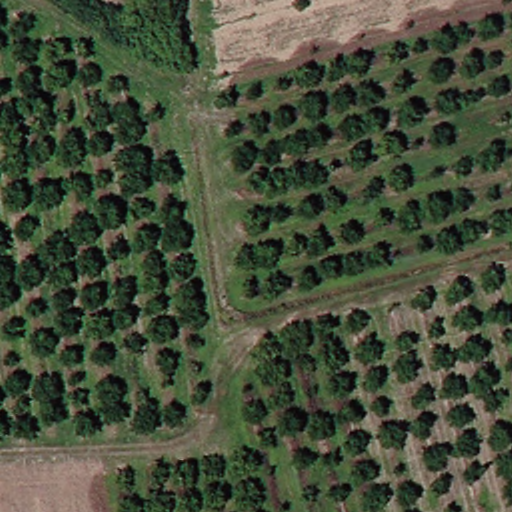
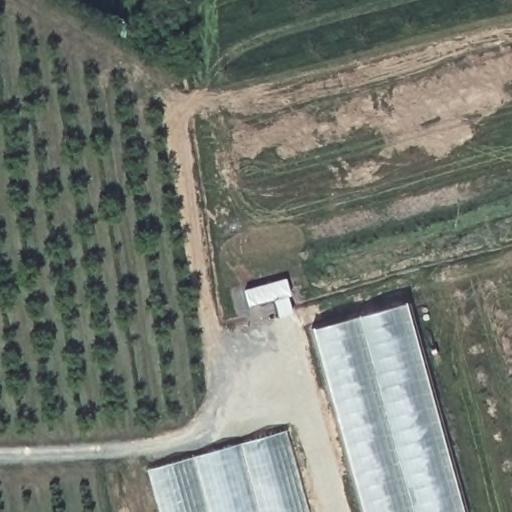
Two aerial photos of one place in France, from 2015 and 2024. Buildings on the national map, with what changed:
new [(275,301),(250,308),(245,290),(287,279),(296,314),(279,318),(275,301)]
new [(312,329),(406,304),(463,512),(363,512),(312,329)]
new [(147,470),(286,431),(308,512),(159,512),(147,470)]

